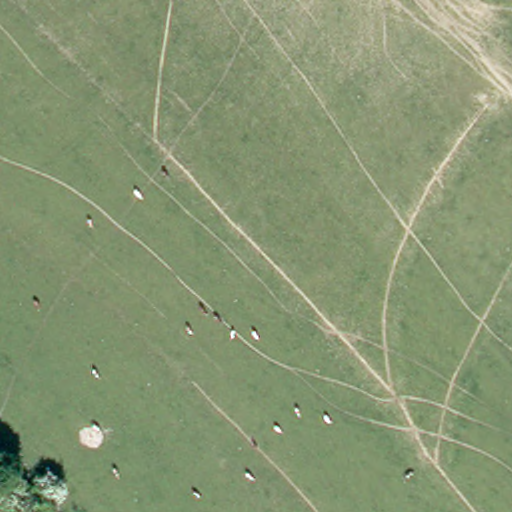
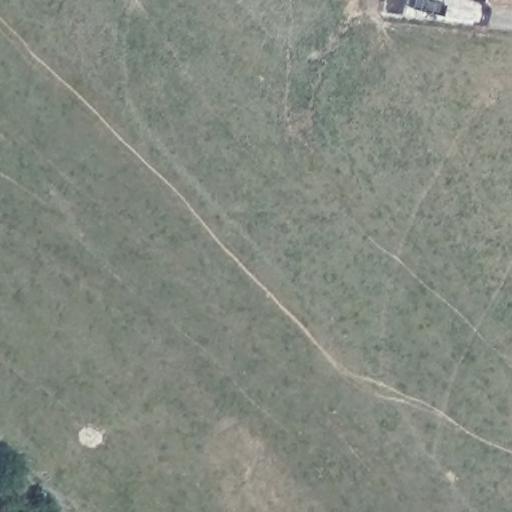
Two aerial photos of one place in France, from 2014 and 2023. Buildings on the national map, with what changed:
[]

